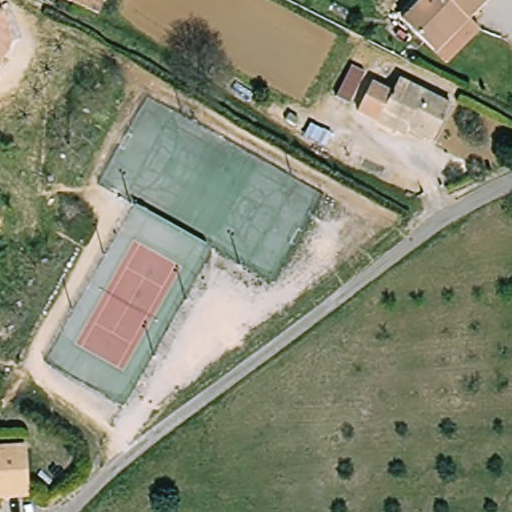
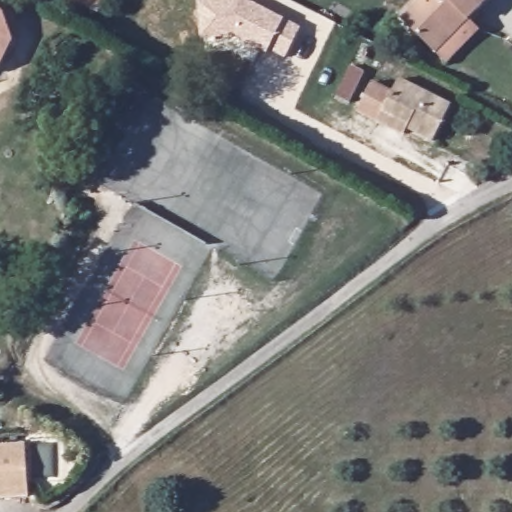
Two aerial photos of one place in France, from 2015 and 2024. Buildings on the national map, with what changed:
unchanged [(58,0),(104,0),(93,17),(58,0)]
new [(247,0),(284,19),(301,28),(285,59),(269,51),(267,54),(233,37),(201,39),(197,0),(203,0),(247,0)]
unchanged [(442,56),(406,25),(427,0),(489,0),(472,21),(484,31),(452,65),(442,56)]
unchanged [(15,38),(3,67),(0,68),(0,6),(4,8),(15,38)]
unchanged [(375,123),(374,126),(351,113),(367,83),(388,89),(398,75),(448,104),(432,139),(408,127),(403,136),(375,123)]
unchanged [(26,500),(0,501),(0,449),(25,448),(26,500)]

